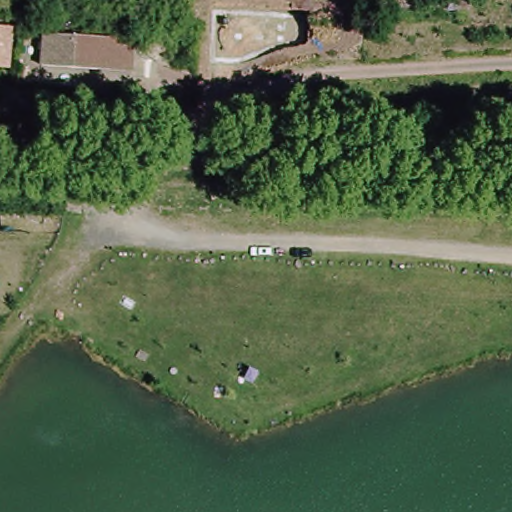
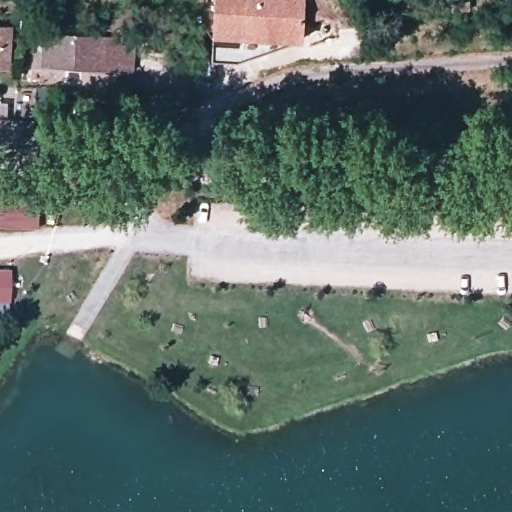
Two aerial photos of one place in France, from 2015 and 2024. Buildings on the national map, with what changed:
new [(290,41),(236,61),(212,59),(212,37),(213,0),(305,0),(304,39),(290,41)]
unchanged [(458,10),(458,0),(474,0),(475,8),(458,10)]
unchanged [(12,66),(0,66),(0,29),(13,29),(12,66)]
unchanged [(109,39),(109,46),(137,47),(136,74),(45,69),(47,36),(109,39)]
unchanged [(30,98),(45,99),(42,131),(14,129),(0,128),(0,105),(15,105),(15,97),(30,98)]
new [(39,228),(0,227),(0,194),(40,196),(39,228)]
new [(9,313),(0,312),(0,269),(10,269),(9,313)]

